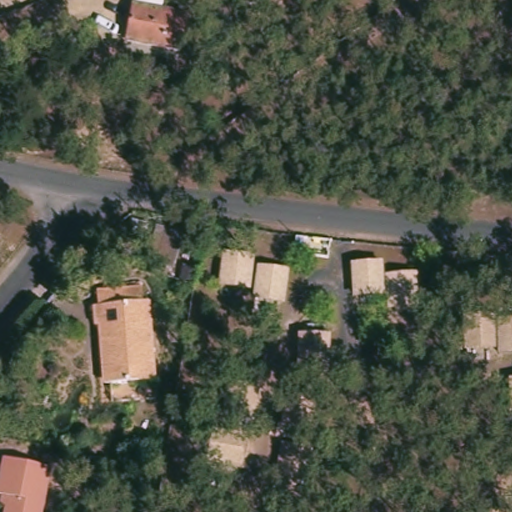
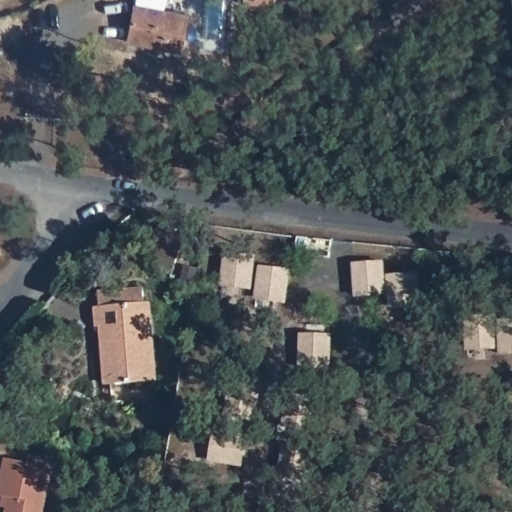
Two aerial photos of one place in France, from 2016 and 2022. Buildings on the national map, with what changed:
unchanged [(186,19),(180,58),(127,48),(135,9),(186,19)]
unchanged [(145,263),(155,228),(180,236),(170,271),(145,263)]
unchanged [(221,284),(225,253),(252,257),(249,287),(221,284)]
unchanged [(355,294),(353,263),(381,262),(383,293),(355,294)]
unchanged [(255,297),(259,267),(287,271),(283,301),(255,297)]
unchanged [(390,306),(387,276),(415,273),(418,304),(390,306)]
unchanged [(157,382),(109,386),(104,329),(95,329),(93,310),(151,306),(157,382)]
unchanged [(466,348),(465,318),(493,317),(495,347),(466,348)]
unchanged [(499,325),(512,325),(512,355),(500,355),(499,325)]
unchanged [(327,369),(299,368),(300,337),(328,338),(327,369)]
unchanged [(225,414),(230,384),(258,389),(253,419),(225,414)]
unchanged [(283,424),(288,394),(316,399),(311,429),(283,424)]
unchanged [(512,400),(512,411),(511,410),(512,400)]
unchanged [(213,460),(219,430),(246,435),(241,465),(213,460)]
unchanged [(306,480),(278,474),(283,445),(311,450),(306,480)]
unchanged [(0,498),(0,471),(2,461),(50,470),(41,512),(4,512),(6,499),(0,498)]

